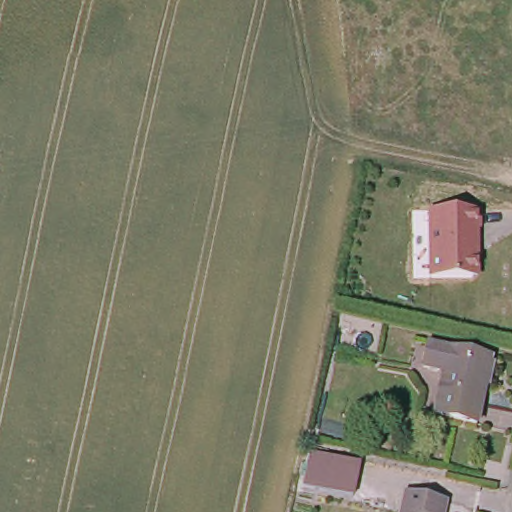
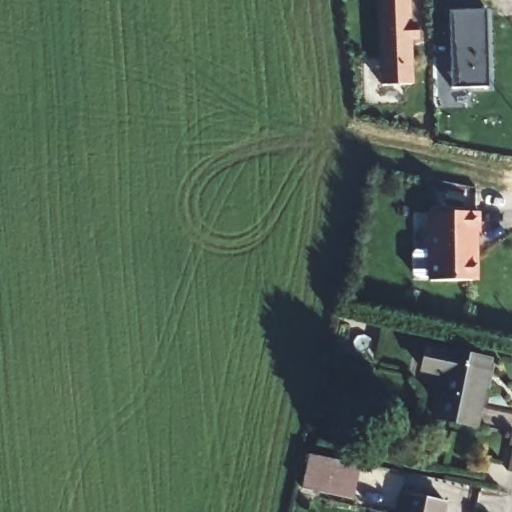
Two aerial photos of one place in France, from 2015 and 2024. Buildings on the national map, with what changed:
new [(413,22),(417,22),(417,41),(412,41),(413,84),(380,85),(378,0),(412,0),(413,22)]
new [(495,5),(495,83),(458,84),(458,5),(495,5)]
unchanged [(425,200),(472,202),(471,220),(468,220),(468,231),(464,231),(463,246),(467,250),(467,264),(462,268),(421,266),(425,200)]
unchanged [(430,343),(490,358),(473,432),(438,424),(450,372),(425,365),(430,343)]
unchanged [(317,445),(366,456),(360,489),(310,479),(317,445)]
unchanged [(445,508),(445,512),(404,512),(406,500),(445,508)]

